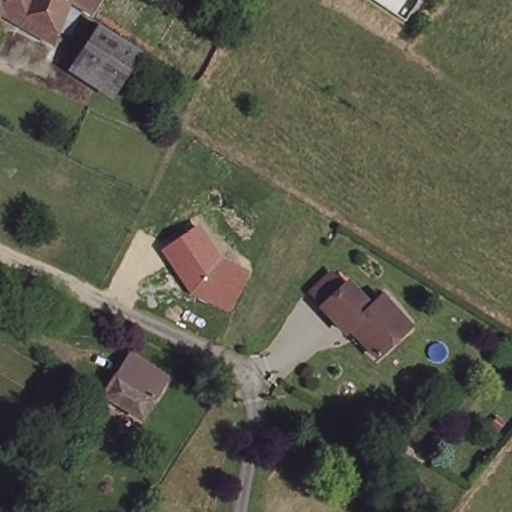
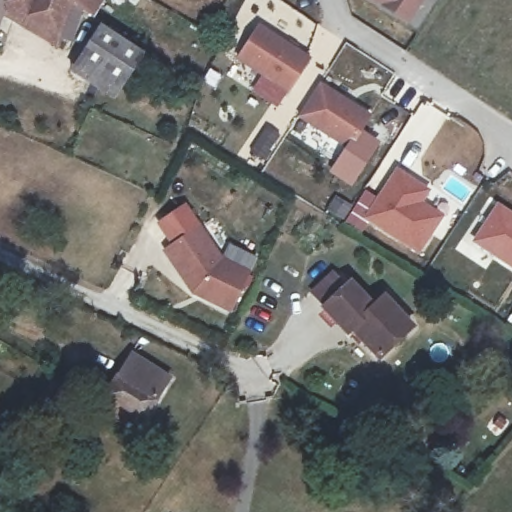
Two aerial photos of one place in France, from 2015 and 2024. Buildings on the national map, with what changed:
unchanged [(0,15),(0,0),(7,0),(0,14),(0,15)]
unchanged [(0,14),(7,0),(40,0),(26,25),(0,14)]
unchanged [(26,25),(40,0),(70,0),(76,4),(55,39),(26,25)]
unchanged [(76,4),(70,0),(97,0),(90,11),(76,4)]
unchanged [(373,0),(420,0),(405,21),(373,0)]
unchanged [(142,50),(117,94),(71,66),(97,24),(142,50)]
new [(287,94),(235,59),(256,24),(310,58),(287,94)]
new [(348,149),(297,117),(319,82),(370,114),(348,149)]
new [(335,194),(354,206),(365,188),(376,195),(395,165),(431,189),(424,200),(446,215),(419,256),(350,213),(344,222),(325,210),(335,194)]
new [(496,201),(512,211),(512,270),(470,242),(496,201)]
unchanged [(220,260),(249,274),(230,313),(190,294),(161,249),(198,224),(220,260)]
unchanged [(327,306),(315,292),(335,274),(347,288),(353,283),(375,304),(385,296),(415,324),(380,356),(355,329),(348,333),(325,308),(327,306)]
unchanged [(99,392),(117,364),(127,348),(168,371),(158,388),(140,417),(99,392)]

